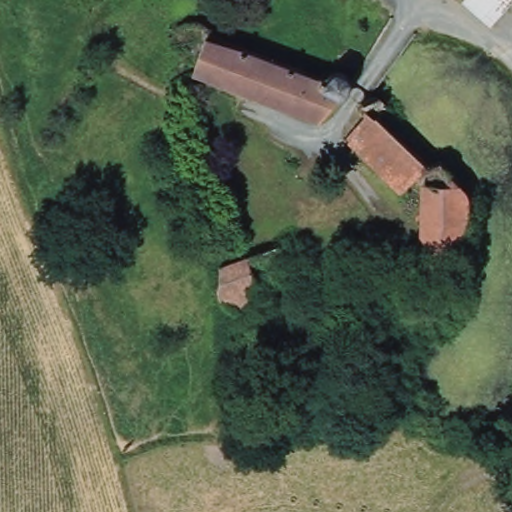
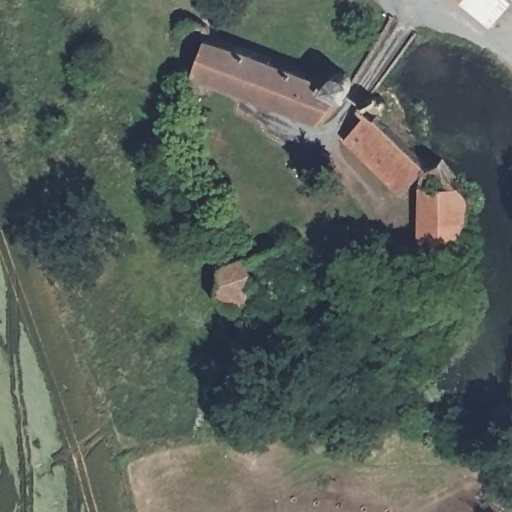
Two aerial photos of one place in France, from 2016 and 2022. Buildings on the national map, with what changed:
unchanged [(512,2),(495,21),(471,0),(512,0),(512,2)]
unchanged [(212,35),(242,43),(257,48),(325,75),(328,71),(332,68),(339,67),(345,69),(349,73),(350,78),(350,84),(348,88),(344,95),(340,93),(322,118),(192,69),(212,35)]
unchanged [(345,139),(364,115),(367,113),(383,124),(430,165),(421,173),(401,194),(345,139)]
unchanged [(458,185),(469,199),(465,256),(419,253),(421,184),(458,185)]

